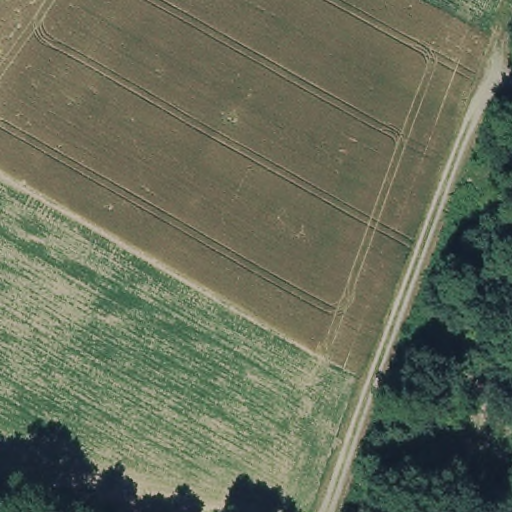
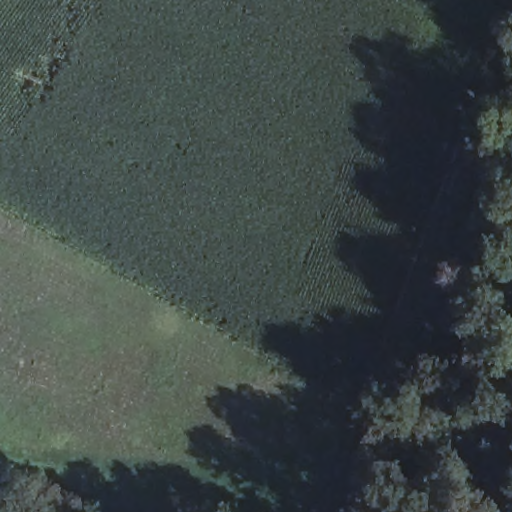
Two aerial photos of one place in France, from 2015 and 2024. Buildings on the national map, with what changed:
[]

